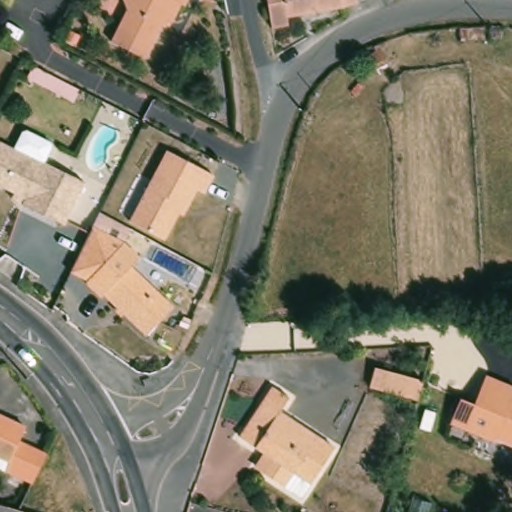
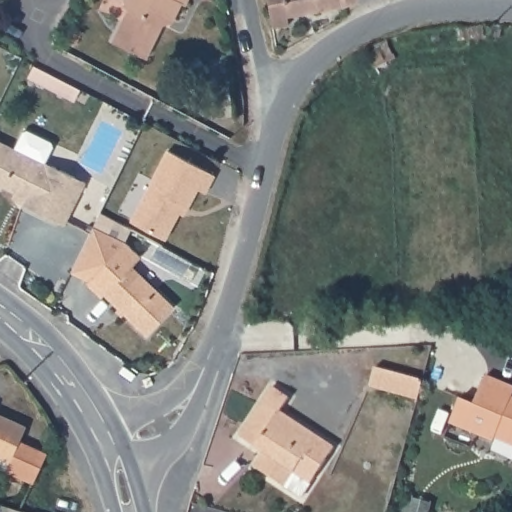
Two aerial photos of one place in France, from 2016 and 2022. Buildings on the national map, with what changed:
unchanged [(127,5),(125,0),(187,0),(186,4),(182,1),(172,20),(166,17),(147,57),(111,40),(127,5)]
unchanged [(287,20),(289,28),(272,30),(267,4),(266,1),(272,0),(271,0),(372,0),(341,10),(287,20)]
unchanged [(359,61),(378,50),(384,61),(365,72),(359,61)]
unchanged [(73,102),(29,80),(34,70),(78,92),(73,102)]
unchanged [(16,196),(4,190),(2,193),(0,192),(0,145),(15,152),(24,136),(27,134),(51,146),(53,150),(46,166),(86,186),(65,229),(24,208),(12,202),(16,196)]
unchanged [(214,179),(205,196),(197,192),(187,211),(182,209),(164,242),(130,225),(167,154),(214,179)]
unchanged [(87,281),(73,275),(98,215),(130,230),(125,241),(87,281)]
unchanged [(147,333),(105,293),(102,295),(87,281),(125,241),(140,255),(132,265),(174,305),(147,333)]
unchanged [(417,407),(370,394),(375,375),(380,357),(411,366),(406,383),(422,387),(417,407)]
unchanged [(497,440),(454,421),(464,396),(479,402),(490,373),(512,382),(512,441),(499,435),(497,440)]
unchanged [(285,490),(263,475),(255,470),(265,456),(240,440),(272,389),(290,400),(280,415),(334,450),(311,486),(301,500),(285,490)]
unchanged [(22,425),(15,440),(42,452),(31,476),(28,481),(1,470),(6,460),(0,457),(0,416),(22,425)]
unchanged [(24,509),(35,512),(0,512),(0,502),(24,509)]

